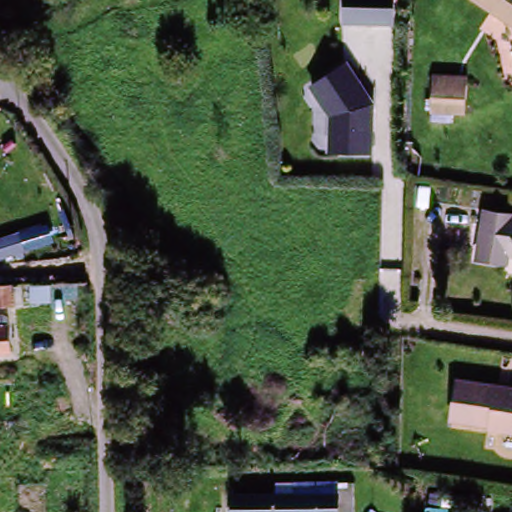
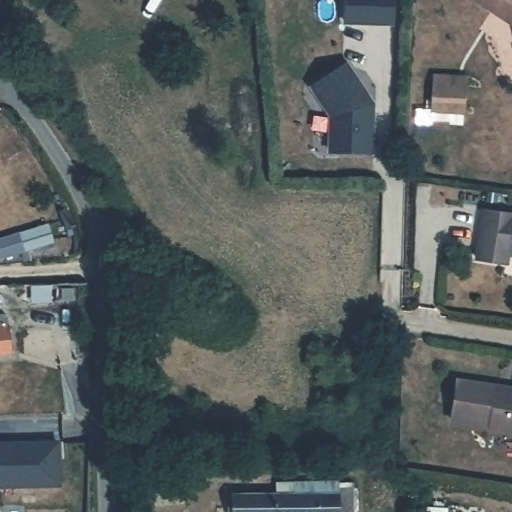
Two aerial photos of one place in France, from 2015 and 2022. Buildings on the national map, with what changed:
unchanged [(350,28),(350,0),(398,0),(398,29),(350,28)]
unchanged [(461,0),(512,0),(512,34),(461,0)]
demolished [(425,32),(425,12),(438,12),(438,32),(425,32)]
unchanged [(373,109),(371,157),(330,155),(331,121),(312,92),(347,69),(373,109)]
unchanged [(434,112),(436,81),(468,83),(466,114),(434,112)]
unchanged [(509,253),(508,262),(478,256),(486,210),(512,215),(512,254),(509,253)]
unchanged [(0,260),(0,243),(16,237),(21,253),(0,260)]
unchanged [(52,304),(33,305),(31,286),(41,286),(51,285),(52,304)]
unchanged [(0,288),(21,287),(22,307),(0,308),(0,288)]
unchanged [(0,355),(0,320),(1,320),(5,354),(0,355)]
unchanged [(495,429),(495,426),(457,420),(463,379),(512,387),(512,432),(495,429)]
new [(61,483),(0,483),(0,441),(61,441),(61,483)]
unchanged [(230,512),(230,492),(274,492),(273,479),(335,478),(335,492),(350,491),(351,512),(230,512)]

